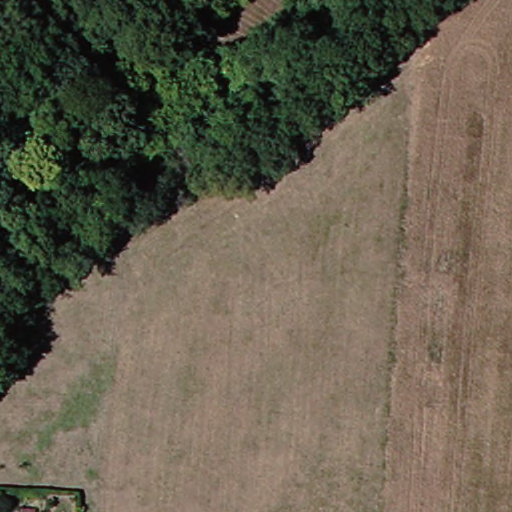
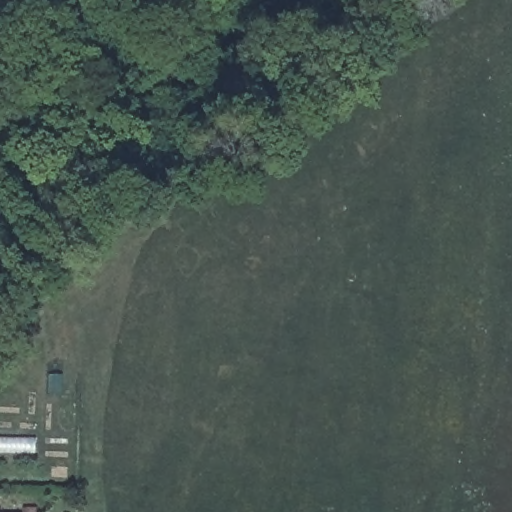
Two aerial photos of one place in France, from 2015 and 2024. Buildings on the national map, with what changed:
unchanged [(17,508),(33,508),(33,512),(17,512),(17,508)]

